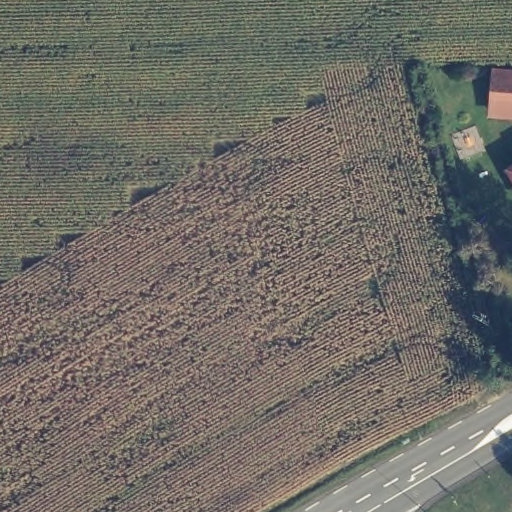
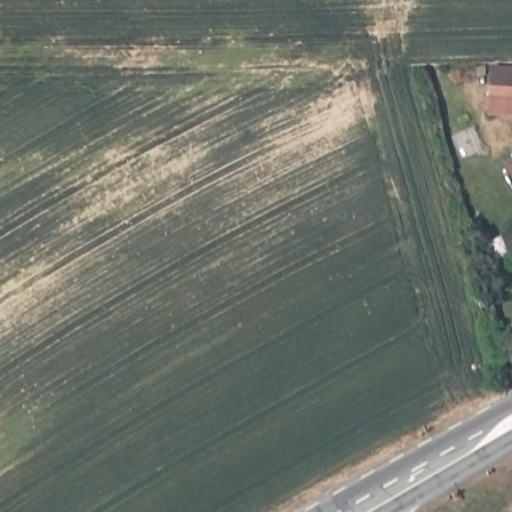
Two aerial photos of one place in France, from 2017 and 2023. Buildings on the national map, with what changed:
unchanged [(509,85),(512,85),(512,107),(491,106),(492,87),(495,87),(495,75),(509,75),(509,85)]
unchanged [(460,161),(452,139),(475,129),(484,151),(460,161)]

